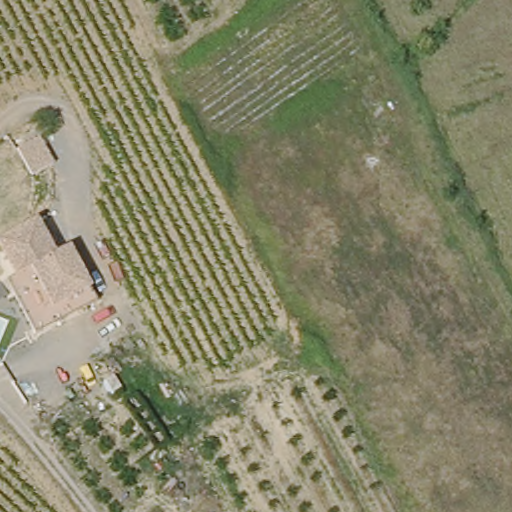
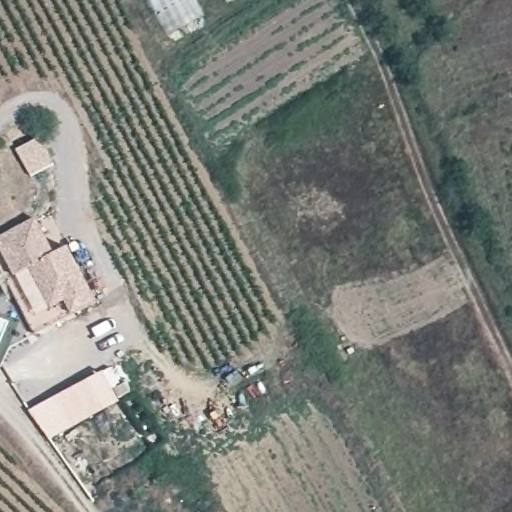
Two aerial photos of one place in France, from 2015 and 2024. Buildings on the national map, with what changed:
unchanged [(204,19),(169,37),(149,0),(207,0),(197,5),(204,19)]
unchanged [(46,133),(50,160),(29,161),(26,137),(46,133)]
unchanged [(7,280),(14,275),(0,252),(0,237),(35,221),(53,257),(69,249),(95,301),(33,331),(7,280)]
new [(103,371),(120,401),(51,440),(30,412),(103,371)]

